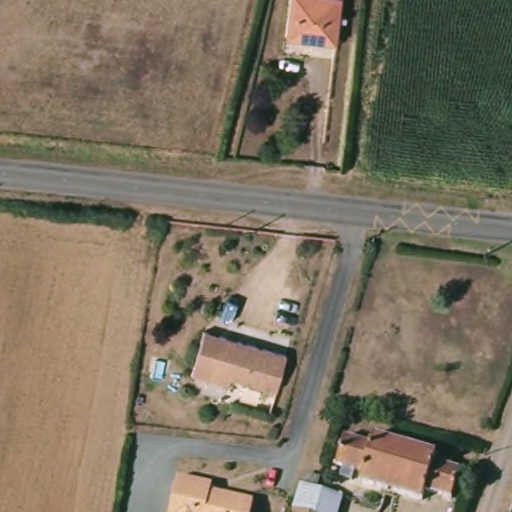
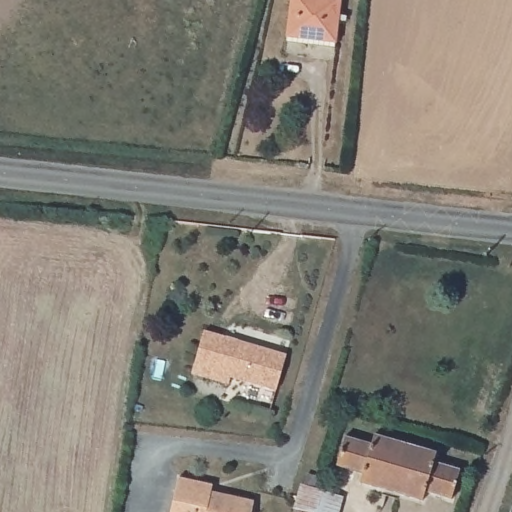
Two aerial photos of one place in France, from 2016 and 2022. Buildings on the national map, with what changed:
unchanged [(280,36),(285,0),(335,0),(329,43),(280,36)]
unchanged [(512,261),(512,272),(509,272),(512,261)]
unchanged [(284,357),(274,390),(230,377),(227,388),(208,383),(222,339),(284,357)]
unchanged [(367,443),(370,432),(433,451),(430,461),(454,468),(446,496),(424,490),(421,500),(398,493),(396,500),(377,494),(379,488),(355,481),(357,471),(333,464),(341,436),(367,443)]
unchanged [(212,486),(210,494),(249,504),(247,512),(170,512),(178,478),(212,486)]
unchanged [(315,488),(342,496),(338,512),(291,512),(300,484),(315,488)]

